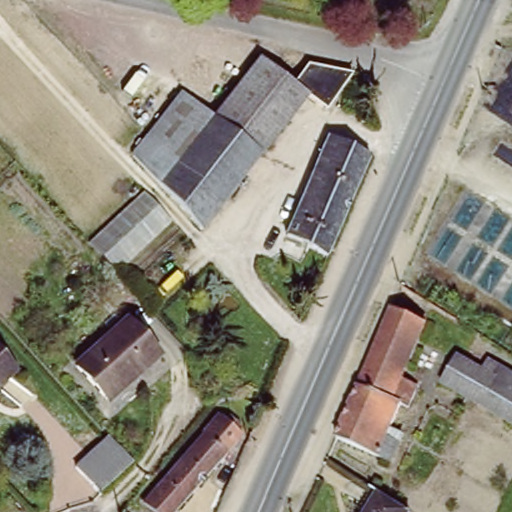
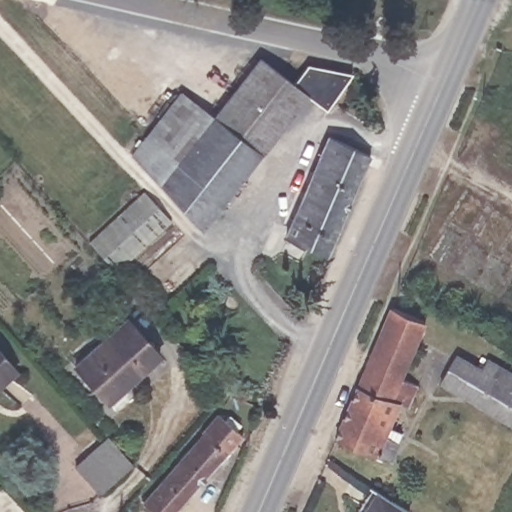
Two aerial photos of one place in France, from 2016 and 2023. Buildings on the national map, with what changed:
unchanged [(145,136),(147,134),(175,96),(177,93),(210,119),(257,60),(290,85),(303,67),(348,76),(329,104),(323,112),(314,105),(303,98),(212,213),(200,229),(133,155),(132,153),(145,136)]
unchanged [(330,139),(372,156),(328,258),(290,237),(330,139)]
unchanged [(170,224),(114,275),(86,243),(139,191),(170,224)]
unchanged [(392,309),(427,324),(404,381),(420,388),(410,410),(402,406),(390,431),(403,437),(392,463),(337,438),(392,309)]
unchanged [(78,369),(92,356),(125,324),(159,359),(129,388),(125,383),(122,387),(106,401),(78,369)]
unchanged [(17,373),(0,388),(0,354),(17,373)]
unchanged [(478,373),(486,361),(512,376),(512,428),(437,384),(453,358),(478,373)]
unchanged [(205,437),(203,435),(218,417),(227,423),(231,418),(242,427),(237,432),(243,438),(179,512),(154,512),(146,505),(205,437)]
unchanged [(108,441),(131,466),(98,496),(75,471),(108,441)]
unchanged [(375,494),(404,512),(364,512),(375,494)]

